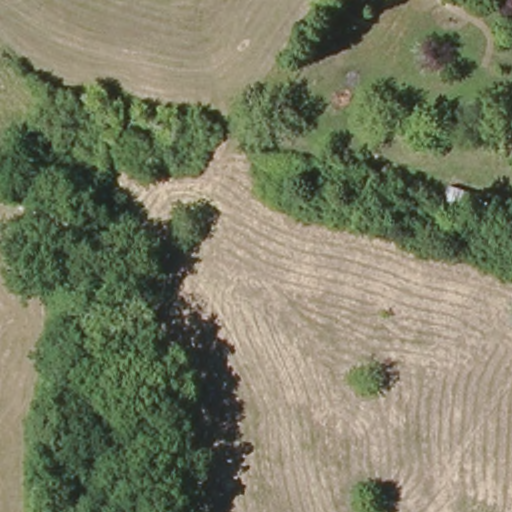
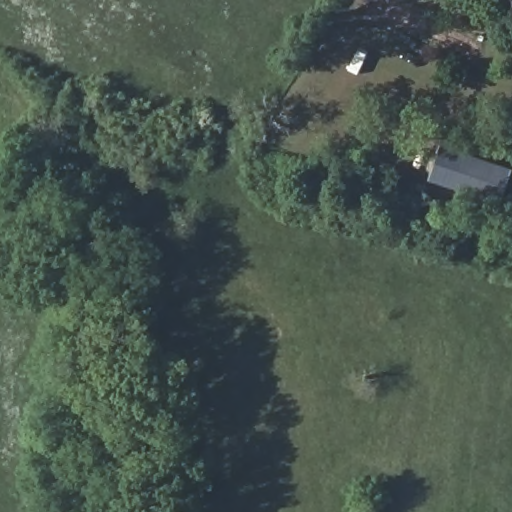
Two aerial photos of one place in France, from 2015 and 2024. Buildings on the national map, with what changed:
new [(431,178),(441,150),(447,152),(448,148),(512,170),(512,171),(502,202),(431,178)]

